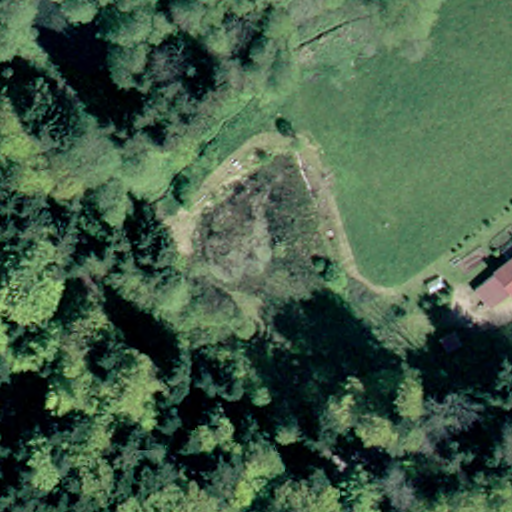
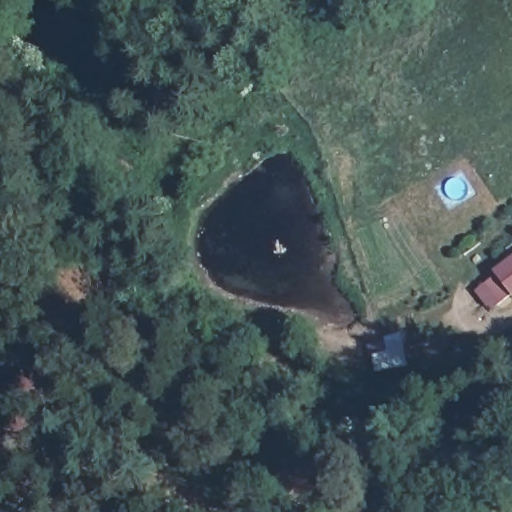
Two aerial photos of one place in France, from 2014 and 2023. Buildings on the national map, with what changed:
unchanged [(497,264),(512,252),(512,282),(492,299),(476,280),(497,264)]

